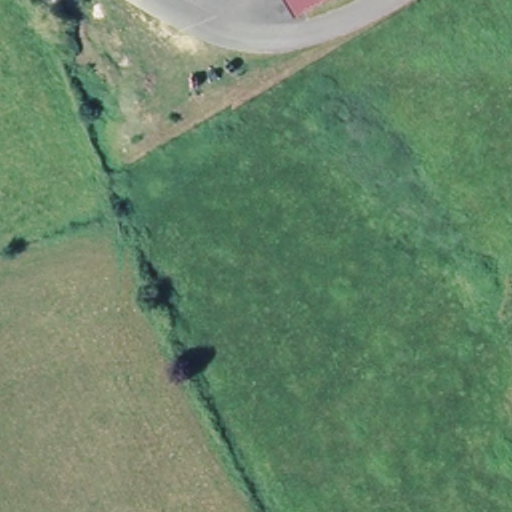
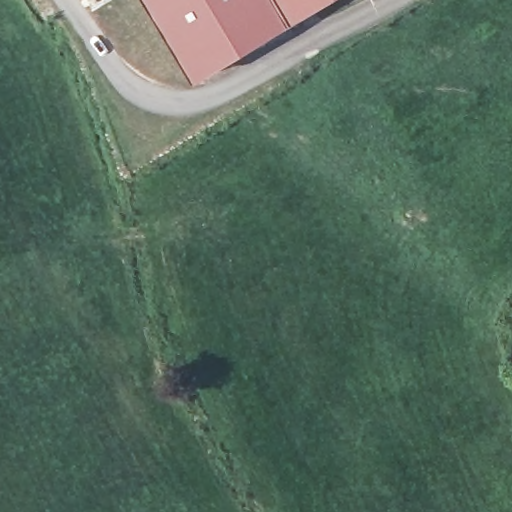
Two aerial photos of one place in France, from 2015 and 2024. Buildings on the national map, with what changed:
new [(150,0),(286,0),(295,17),(196,75),(150,0)]
unchanged [(286,0),(323,0),(295,17),(286,0)]

